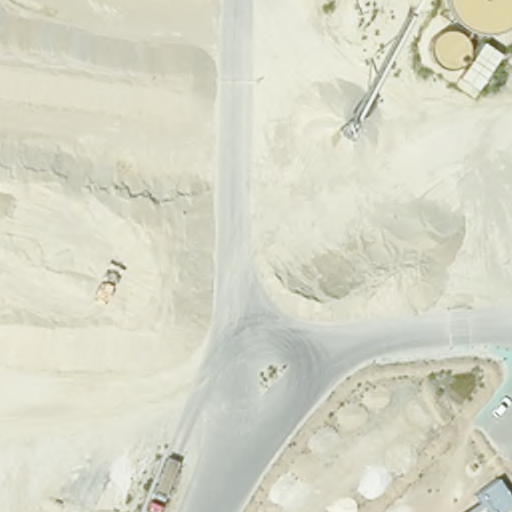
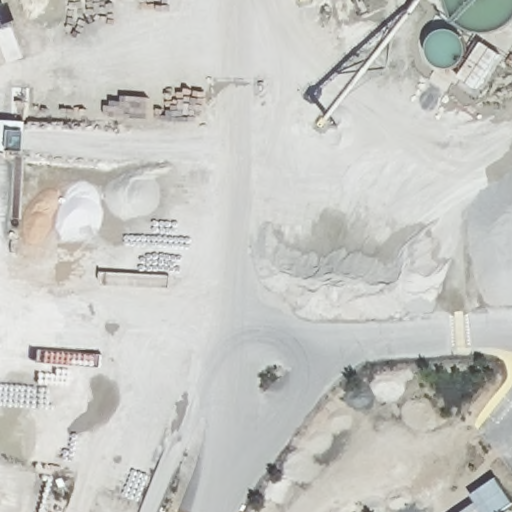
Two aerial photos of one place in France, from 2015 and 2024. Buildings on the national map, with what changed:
unchanged [(500,54),(477,90),(460,78),(482,44),(500,54)]
unchanged [(465,512),(477,503),(475,497),(500,477),(512,496),(512,506),(504,512),(465,512)]

